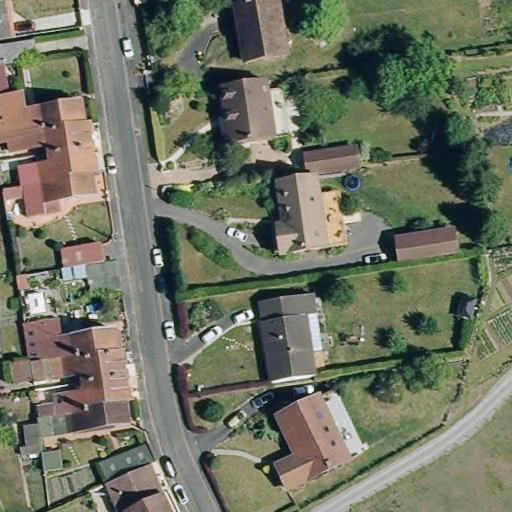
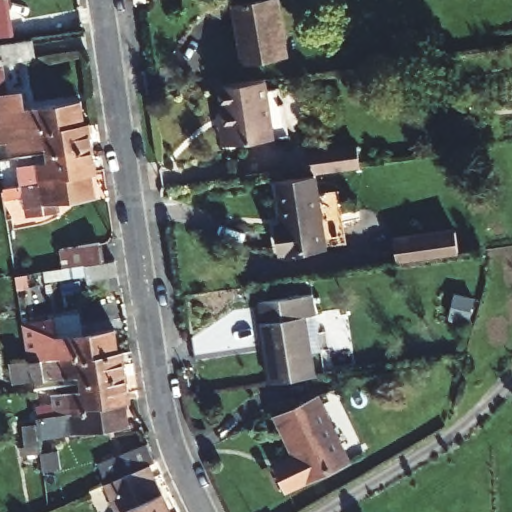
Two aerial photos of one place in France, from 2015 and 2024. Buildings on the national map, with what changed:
unchanged [(276,0),(284,53),(247,58),(242,26),(236,26),(232,2),(247,0),(276,0)]
unchanged [(6,36),(0,37),(0,3),(6,36)]
unchanged [(25,36),(28,56),(0,60),(0,40),(25,36)]
unchanged [(228,141),(219,84),(262,77),(270,135),(228,141)]
unchanged [(68,130),(18,138),(11,139),(2,141),(0,141),(0,99),(18,96),(21,113),(75,104),(80,128),(68,130)]
unchanged [(68,130),(80,128),(85,126),(90,151),(60,156),(44,158),(42,151),(21,154),(18,138),(68,130)]
unchanged [(280,248),(275,221),(282,219),(275,175),(304,170),(301,150),(346,143),(350,164),(332,166),(312,169),(315,189),(324,241),(280,248)]
unchanged [(88,175),(46,182),(26,185),(23,171),(45,168),(44,158),(60,156),(90,151),(93,174),(88,175)]
unchanged [(92,198),(53,205),(55,216),(32,219),(23,221),(20,200),(0,203),(0,190),(26,185),(46,182),(88,175),(92,198)]
unchanged [(335,186),(343,238),(324,241),(315,189),(335,186)]
unchanged [(394,236),(455,227),(459,249),(397,258),(394,236)]
unchanged [(90,297),(85,267),(83,268),(70,269),(68,254),(95,249),(97,266),(115,263),(120,293),(90,297)]
unchanged [(256,300),(310,292),(312,311),(317,341),(307,343),(311,373),(267,379),(256,300)]
unchanged [(18,323),(42,319),(43,329),(52,328),(53,337),(117,326),(120,350),(53,362),(36,365),(38,380),(27,382),(7,385),(5,370),(25,366),(18,323)]
unchanged [(120,350),(123,374),(77,381),(76,373),(55,376),(53,362),(120,350)]
unchanged [(32,421),(30,409),(50,406),(49,395),(57,394),(79,390),(77,381),(123,374),(127,398),(122,399),(125,421),(63,431),(36,435),(37,442),(24,444),(21,423),(32,421)]
unchanged [(267,469),(287,460),(268,420),(325,393),(355,455),(278,492),(267,469)]
unchanged [(108,485),(100,465),(150,446),(157,464),(152,466),(108,485)]
unchanged [(40,459),(56,456),(58,474),(42,476),(40,459)]
unchanged [(107,486),(108,485),(152,466),(170,512),(119,512),(107,486)]

